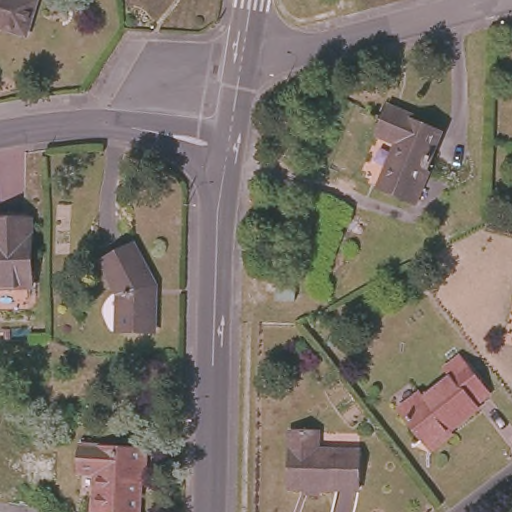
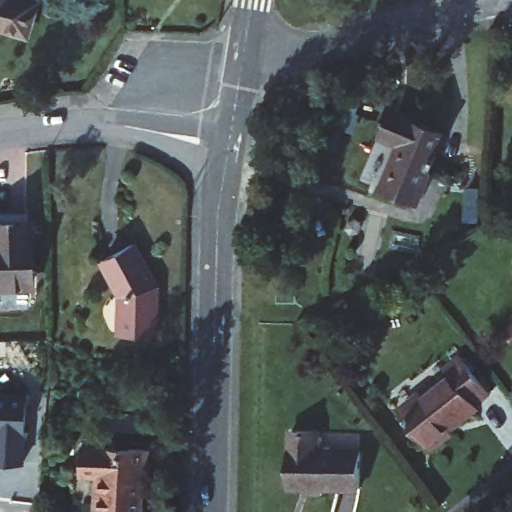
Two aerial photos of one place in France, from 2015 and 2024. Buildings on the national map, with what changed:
unchanged [(31,30),(5,23),(0,22),(0,0),(40,0),(31,30)]
unchanged [(426,182),(419,200),(379,184),(398,138),(381,131),(391,105),(412,114),(412,118),(441,129),(431,152),(434,154),(431,163),(428,161),(424,169),(431,171),(426,182)]
unchanged [(30,286),(0,286),(0,224),(29,223),(30,286)]
unchanged [(159,334),(123,334),(123,294),(104,263),(136,244),(159,284),(159,334)]
unchanged [(296,287),(296,301),(279,301),(280,286),(296,287)]
unchanged [(436,453),(427,443),(402,410),(422,395),(424,400),(453,377),(447,369),(462,357),(491,396),(478,405),(480,409),(452,431),(456,437),(436,453)]
new [(1,395),(26,397),(21,466),(0,464),(0,392),(1,393),(1,395)]
unchanged [(308,493),(307,483),(291,483),(293,428),(319,428),(319,448),(361,449),(359,484),(339,484),(323,484),(323,493),(308,493)]
unchanged [(94,504),(96,464),(81,463),(82,439),(146,440),(146,465),(146,476),(140,476),(138,506),(94,504)]

